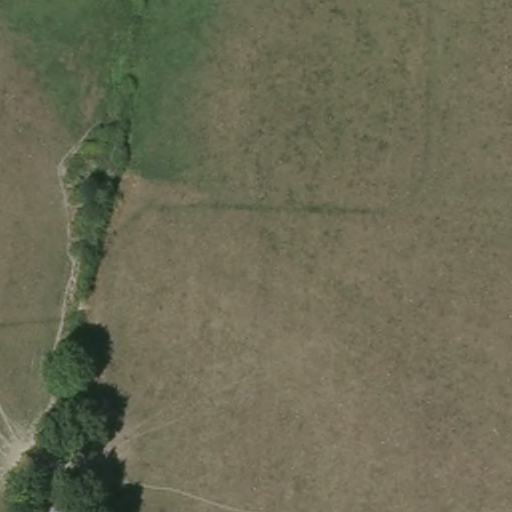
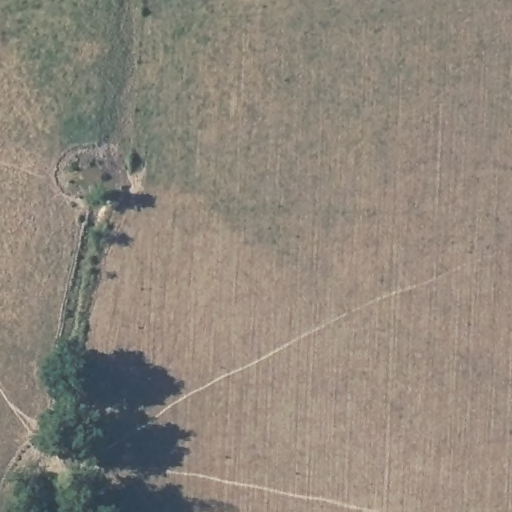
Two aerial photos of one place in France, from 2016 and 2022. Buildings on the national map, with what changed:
unchanged [(41,488),(77,492),(77,512),(40,512),(41,488)]

